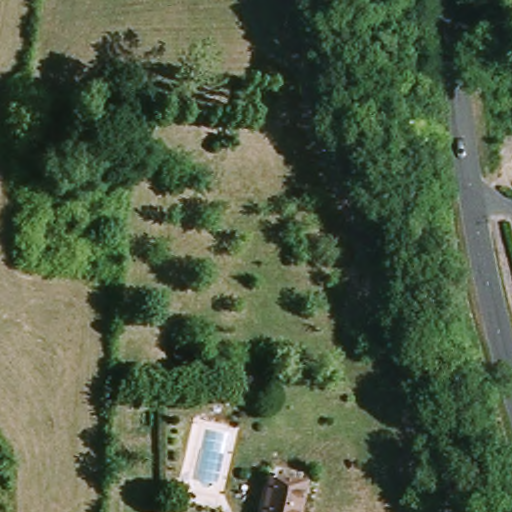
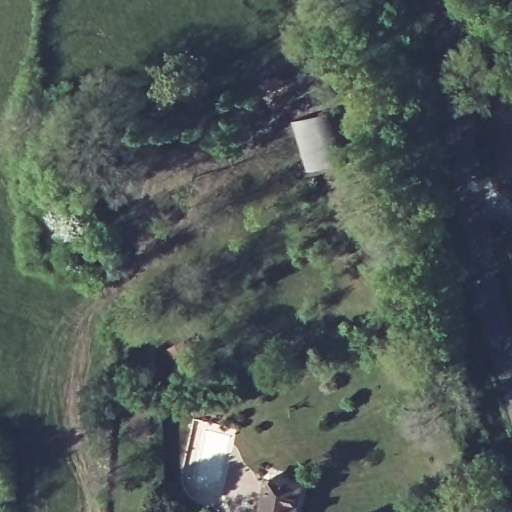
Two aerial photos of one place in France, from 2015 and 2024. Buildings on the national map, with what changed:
new [(293,122),(332,110),(346,158),(307,170),(293,122)]
unchanged [(305,488),(301,512),(263,512),(268,482),(305,488)]

